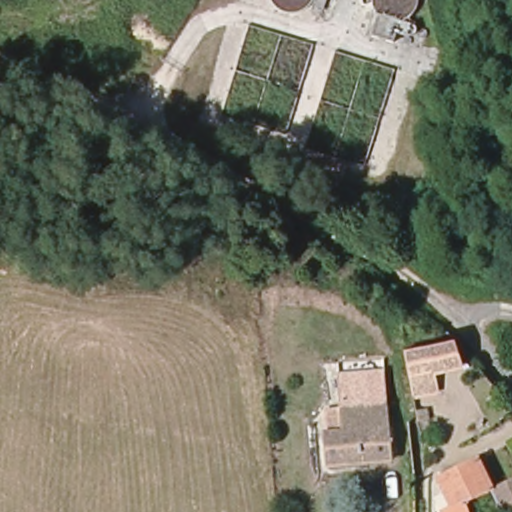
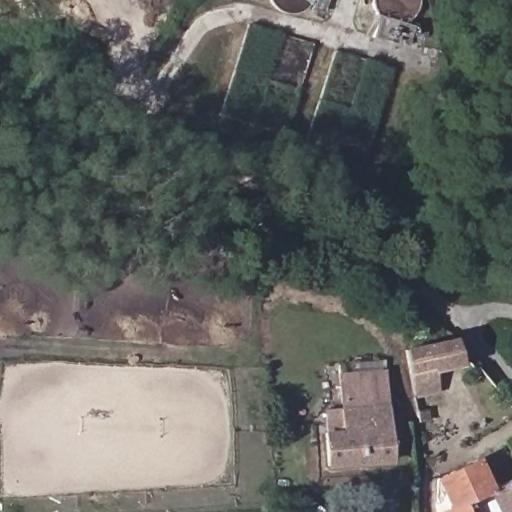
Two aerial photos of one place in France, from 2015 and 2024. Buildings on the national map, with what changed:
unchanged [(399,47),(370,40),(378,14),(381,19),(391,22),(398,22),(405,21),(399,47)]
unchanged [(458,337),(465,364),(437,370),(435,370),(440,391),(428,395),(429,397),(416,400),(407,351),(430,345),(458,337)]
unchanged [(395,457),(332,462),(328,432),(347,429),(342,373),(388,369),(395,457)]
unchanged [(424,402),(426,412),(416,415),(414,404),(424,402)]
unchanged [(481,492),(475,495),(476,497),(481,512),(450,512),(448,508),(460,502),(450,471),(488,451),(502,480),(503,482),(481,492)]
unchanged [(490,512),(481,492),(503,482),(502,480),(512,476),(512,512),(490,512)]

